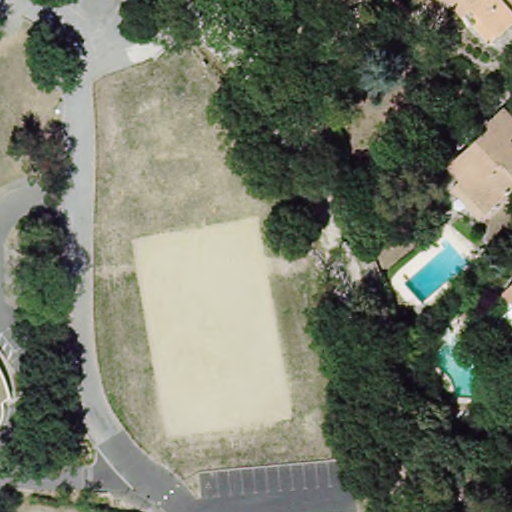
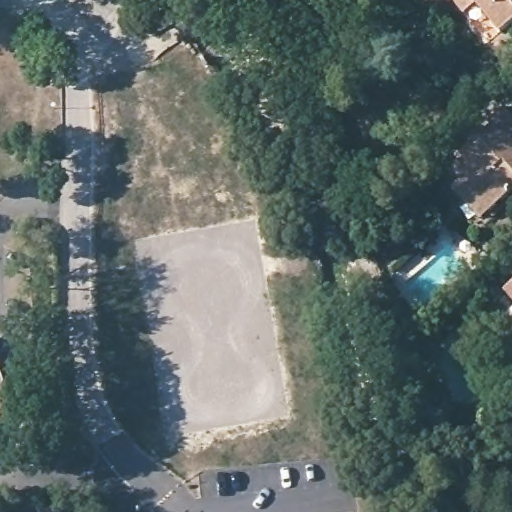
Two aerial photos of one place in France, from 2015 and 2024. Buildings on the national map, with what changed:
unchanged [(512,0),(512,33),(507,37),(483,10),(472,19),(455,0),(512,0)]
unchanged [(462,184),(449,170),(492,131),(488,126),(504,112),(512,120),(512,143),(512,144),(512,194),(491,214),(483,222),(454,191),(462,184)]
unchanged [(512,295),(512,308),(506,301),(512,295)]
unchanged [(9,403),(0,422),(0,382),(9,403)]

